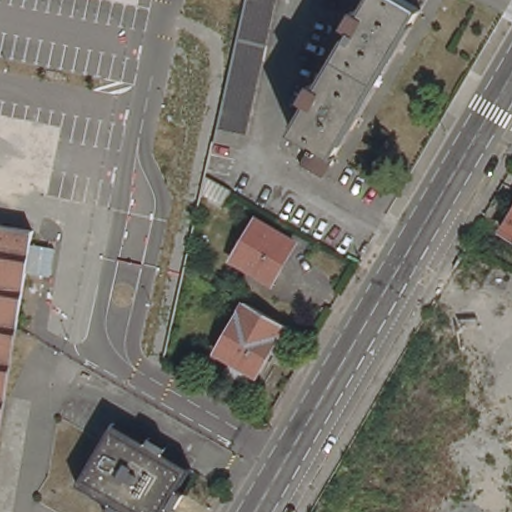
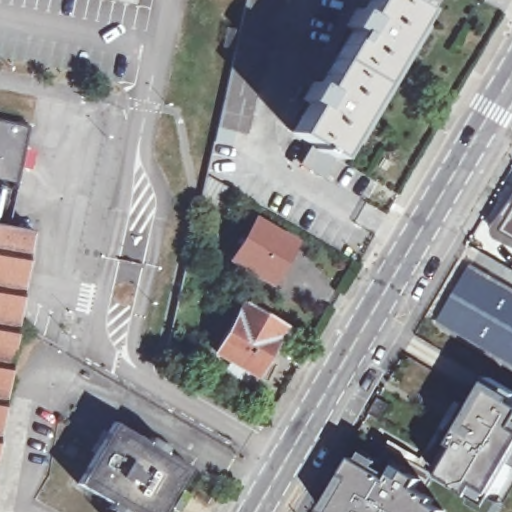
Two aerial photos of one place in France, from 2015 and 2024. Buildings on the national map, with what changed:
unchanged [(235,132),(232,146),(215,143),(246,0),(277,0),(248,134),(235,132)]
unchanged [(314,144),(295,132),(312,104),(307,101),(317,85),(322,87),(355,31),(350,27),(359,10),(365,12),(373,0),(408,0),(424,9),(337,157),(325,177),(302,164),(314,144)]
new [(24,149),(34,151),(30,170),(20,168),(15,192),(2,190),(0,196),(0,122),(27,127),(24,149)]
unchanged [(505,232),(512,219),(512,236),(505,232)]
unchanged [(257,222),(292,242),(271,277),(237,257),(257,222)]
unchanged [(36,230),(26,291),(25,292),(20,327),(0,449),(0,223),(33,229),(36,230)]
new [(470,268),(512,293),(512,365),(437,322),(470,268)]
unchanged [(287,325),(258,375),(213,350),(242,299),(287,325)]
new [(457,445),(465,431),(492,383),(507,392),(509,389),(512,391),(512,468),(510,467),(492,496),(504,506),(499,512),(486,512),(475,504),(477,499),(472,496),(455,485),(451,491),(434,482),(448,453),(456,458),(462,449),(457,445)]
unchanged [(127,512),(111,512),(108,511),(110,502),(80,483),(114,425),(143,442),(149,435),(167,444),(165,452),(190,468),(178,490),(186,494),(176,511),(169,508),(166,512),(128,512),(127,512)]
new [(442,512),(441,512),(324,512),(323,512),(345,476),(354,460),(359,463),(364,454),(380,463),(378,467),(392,476),(398,467),(409,473),(419,480),(414,488),(434,501),(432,506),(442,512)]

